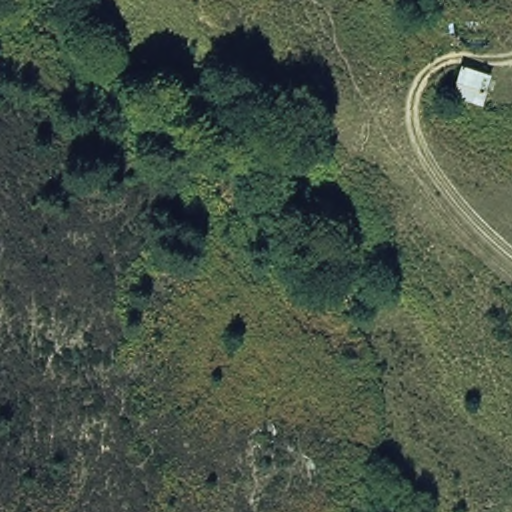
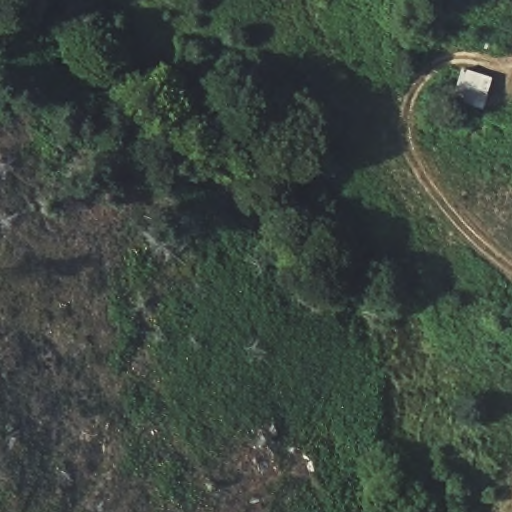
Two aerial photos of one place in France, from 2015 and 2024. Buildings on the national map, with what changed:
unchanged [(458,38),(440,37),(439,22),(494,20),(495,40),(459,46),(458,38)]
unchanged [(461,68),(493,75),(486,109),(452,96),(461,68)]

